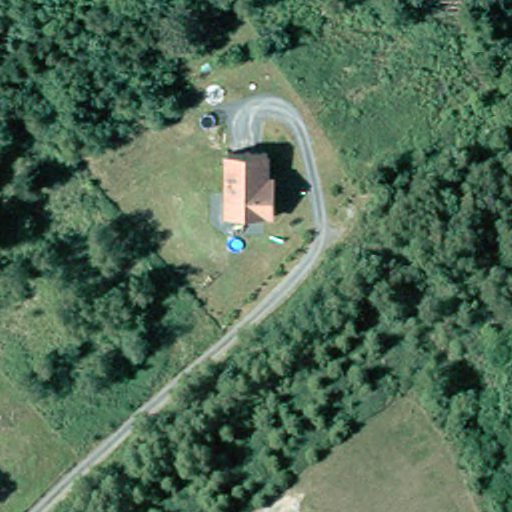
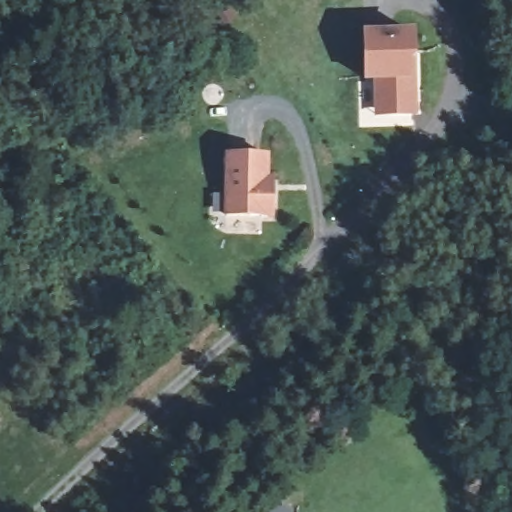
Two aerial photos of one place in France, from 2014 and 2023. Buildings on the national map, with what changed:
new [(418,116),(375,117),(375,81),(363,81),(364,31),(415,29),(417,54),(418,116)]
unchanged [(275,185),(274,209),(227,208),(227,201),(228,146),(268,146),(267,169),(267,171),(275,171),(275,185)]

